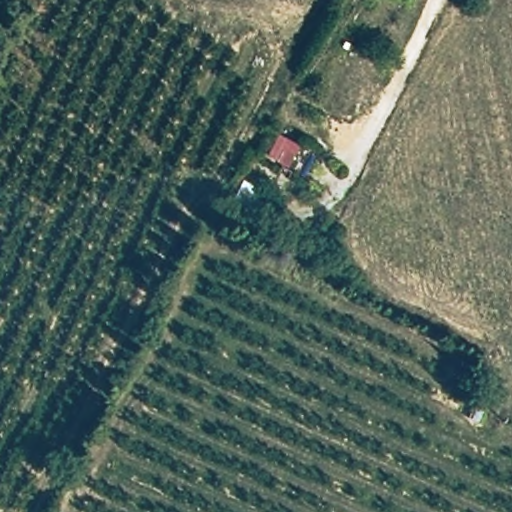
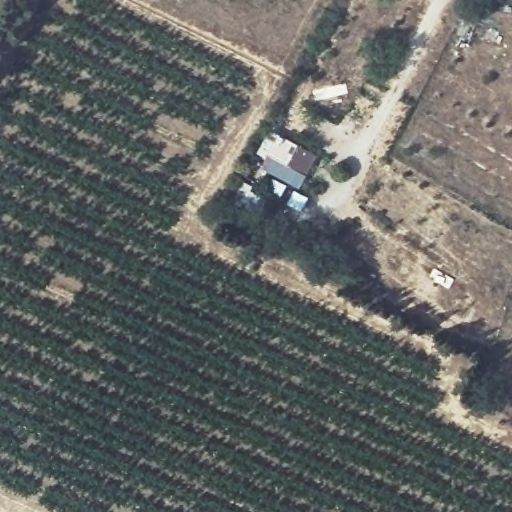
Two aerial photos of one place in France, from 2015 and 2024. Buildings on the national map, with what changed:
unchanged [(276,132),(306,152),(298,169),(267,153),(276,132)]
unchanged [(241,185),(266,198),(256,218),(229,205),(241,185)]

